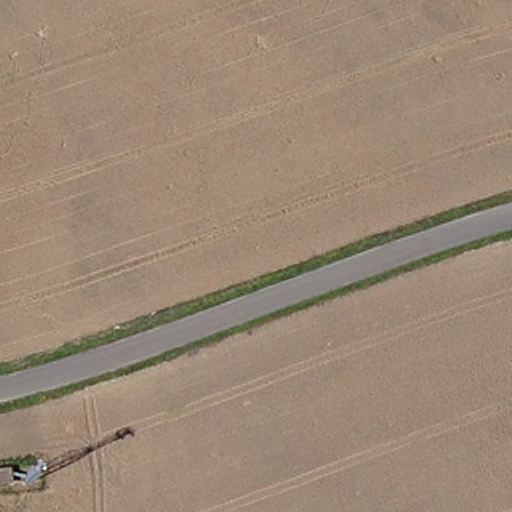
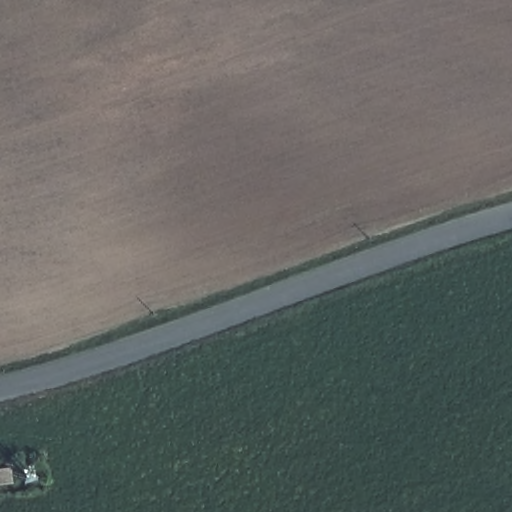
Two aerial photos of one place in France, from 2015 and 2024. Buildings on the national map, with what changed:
unchanged [(14,489),(0,491),(0,478),(14,477),(14,489)]

